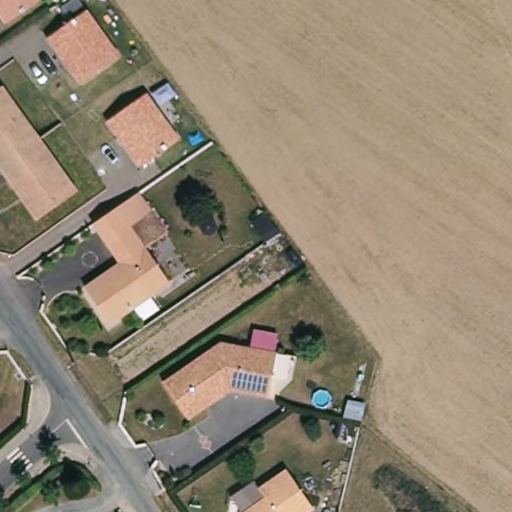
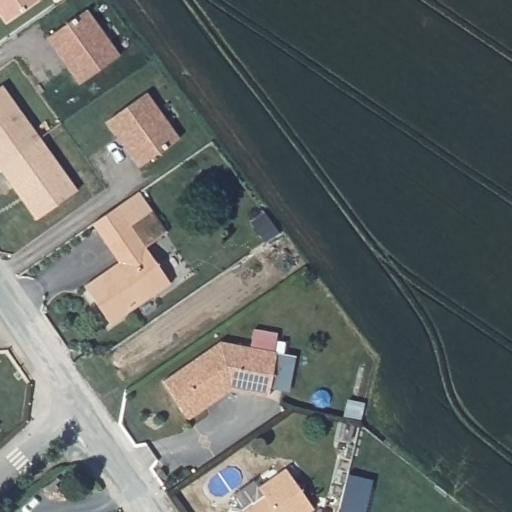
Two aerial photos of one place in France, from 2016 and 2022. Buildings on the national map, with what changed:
unchanged [(0,13),(0,0),(39,0),(5,21),(0,13)]
unchanged [(48,38),(88,10),(119,55),(80,84),(48,38)]
unchanged [(36,219),(22,200),(27,197),(15,179),(10,181),(0,166),(0,89),(4,86),(76,192),(36,219)]
unchanged [(148,93),(180,138),(140,168),(107,122),(148,93)]
unchanged [(99,221),(123,205),(145,190),(156,206),(135,222),(111,239),(99,221)]
unchanged [(176,282),(117,323),(90,285),(125,259),(111,239),(135,222),(176,282)]
unchanged [(228,340),(255,347),(260,330),(283,335),(279,353),(269,397),(235,390),(192,419),(167,382),(228,340)]
unchanged [(318,510),(315,512),(252,512),(272,498),(266,489),(292,471),(318,510)]
new [(372,479),(365,512),(340,512),(348,473),(372,479)]

